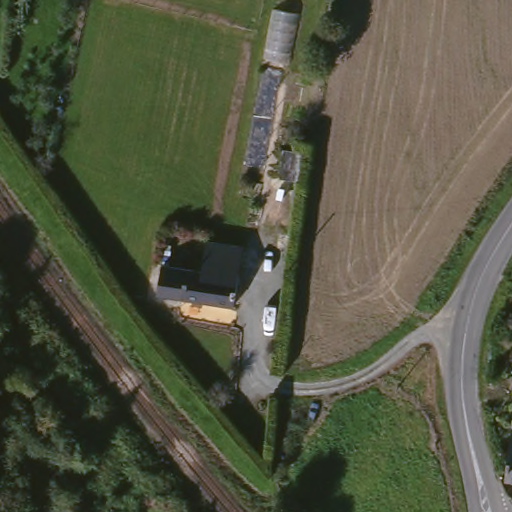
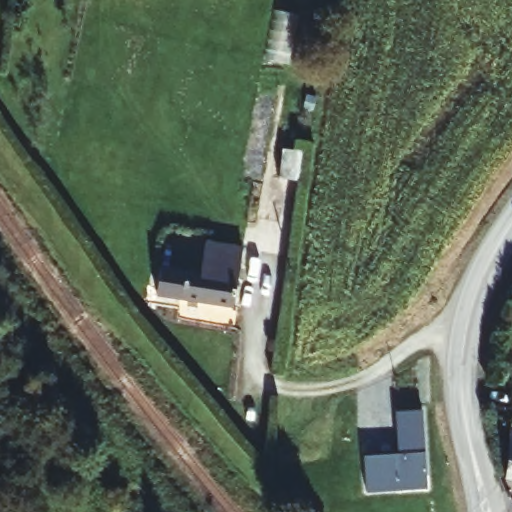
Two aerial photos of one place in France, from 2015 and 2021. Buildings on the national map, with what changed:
unchanged [(158,291),(165,261),(200,265),(202,240),(238,247),(233,303),(158,291)]
unchanged [(512,392),(512,484),(498,482),(512,392)]
new [(397,454),(395,413),(422,411),(428,489),(367,493),(364,456),(397,454)]

